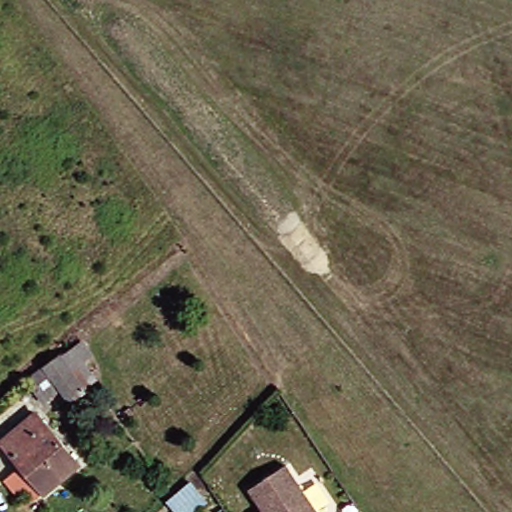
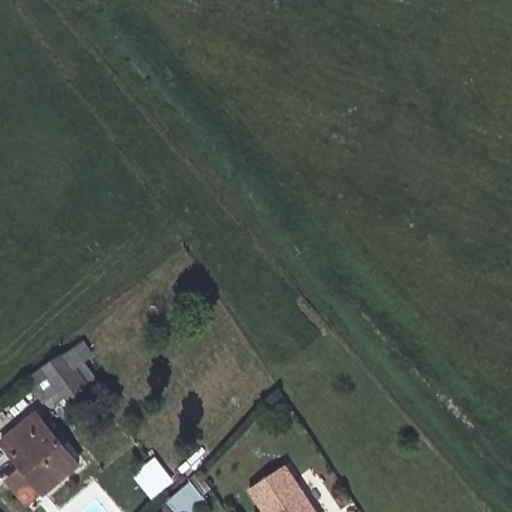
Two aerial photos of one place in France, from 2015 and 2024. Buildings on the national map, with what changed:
unchanged [(31,377),(65,353),(80,342),(89,354),(81,360),(94,375),(86,381),(90,385),(89,385),(70,400),(60,388),(45,400),(35,387),(37,386),(31,377)]
unchanged [(2,442),(36,413),(79,464),(45,493),(2,442)]
unchanged [(249,490),(286,465),(318,512),(262,512),(263,511),(249,490)]

